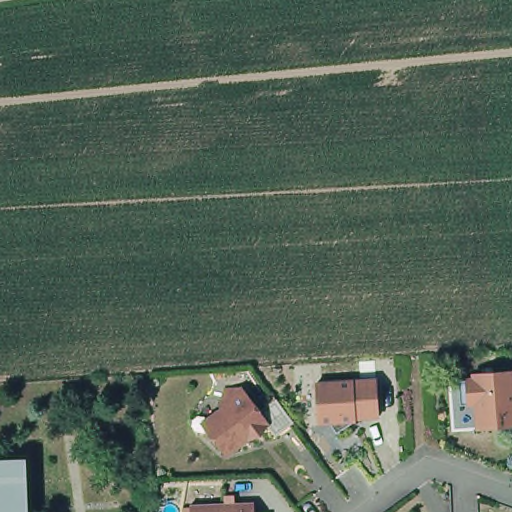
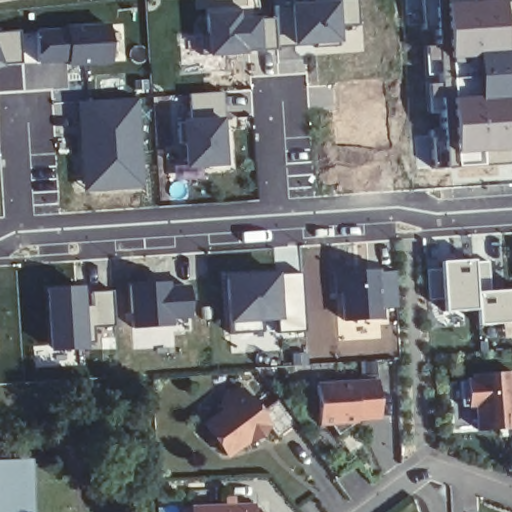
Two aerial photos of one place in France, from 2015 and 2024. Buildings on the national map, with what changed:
new [(272,4),(290,5),(290,1),(335,0),(356,0),(358,26),(340,25),(340,45),(275,46),(274,18),(272,4)]
new [(470,1),(500,2),(505,67),(512,67),(512,77),(450,77),(450,74),(425,74),(425,47),(445,47),(445,0),(470,0),(470,1)]
new [(245,50),(246,55),(209,57),(206,8),(243,7),(243,19),(274,18),(275,50),(245,50)]
new [(67,66),(69,89),(22,92),(19,32),(36,33),(36,29),(65,29),(65,24),(108,24),(109,65),(67,66)]
new [(22,92),(0,92),(0,33),(19,32),(22,92)]
new [(506,85),(507,101),(512,100),(512,147),(510,147),(511,164),(482,165),(478,152),(452,153),(452,149),(443,150),(440,112),(428,112),(425,86),(451,85),(450,77),(512,77),(512,85),(506,85)]
new [(228,165),(186,169),(185,146),(180,146),(177,121),(186,120),(190,112),(190,95),(220,95),(228,165)]
new [(85,193),(78,104),(137,99),(140,190),(85,193)]
new [(473,260),(474,293),(512,291),(512,326),(475,328),(475,312),(442,313),(439,260),(473,260)]
new [(343,322),(342,268),(380,269),(380,272),(395,272),(397,308),(380,307),(381,320),(343,322)]
new [(226,273),(300,273),(305,332),(277,332),(276,321),(228,325),(226,273)]
new [(130,284),(170,281),(171,286),(184,286),(188,317),(170,319),(171,326),(132,329),(130,284)]
new [(50,350),(47,288),(82,287),(82,307),(92,307),(90,293),(113,292),(113,327),(92,327),(93,344),(84,344),(85,350),(50,350)]
unchanged [(474,379),(473,373),(512,371),(512,427),(479,430),(477,406),(469,407),(467,379),(474,379)]
unchanged [(377,379),(380,419),(322,423),(320,383),(377,379)]
unchanged [(272,426),(229,457),(202,423),(222,410),(217,403),(241,387),(272,426)]
unchanged [(24,512),(0,512),(0,467),(22,467),(24,512)]
unchanged [(255,512),(194,512),(193,503),(253,501),(255,512)]

